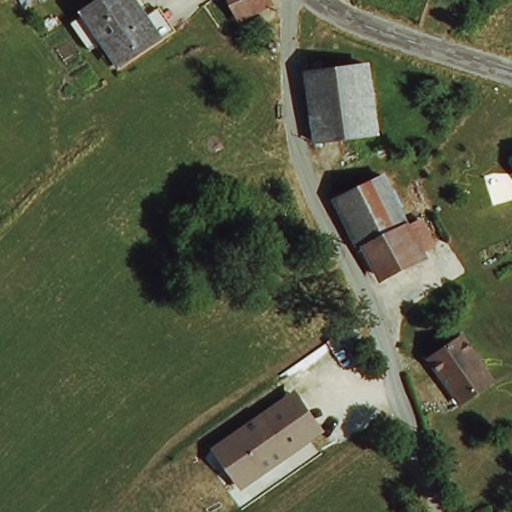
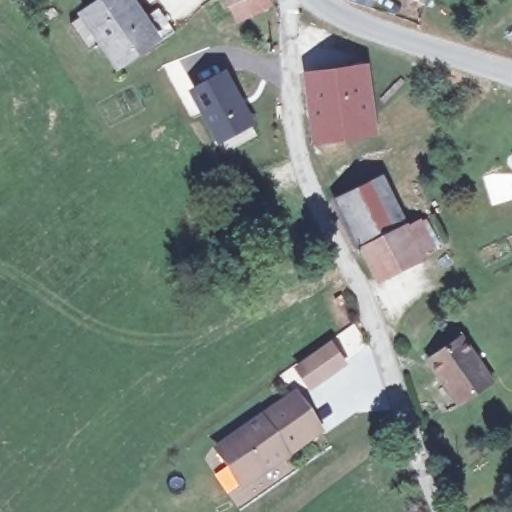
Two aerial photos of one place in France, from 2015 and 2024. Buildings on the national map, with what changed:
unchanged [(175,36),(160,44),(156,38),(116,64),(103,44),(89,52),(73,23),(114,0),(135,0),(148,21),(163,13),(175,36)]
unchanged [(268,6),(241,22),(228,0),(265,0),(268,6)]
new [(190,90),(227,69),(256,123),(219,144),(190,90)]
unchanged [(371,111),(374,128),(313,139),(310,115),(319,112),(313,76),(362,69),(371,111)]
unchanged [(328,204),(375,182),(401,232),(415,259),(370,281),(356,254),(352,256),(328,204)]
new [(333,339),(349,363),(311,390),(294,366),(333,339)]
unchanged [(431,357),(458,341),(485,382),(458,401),(431,357)]
unchanged [(320,434),(241,488),(214,446),(295,392),(320,434)]

